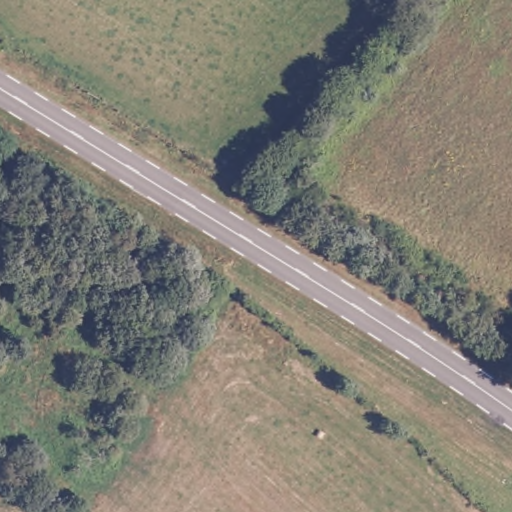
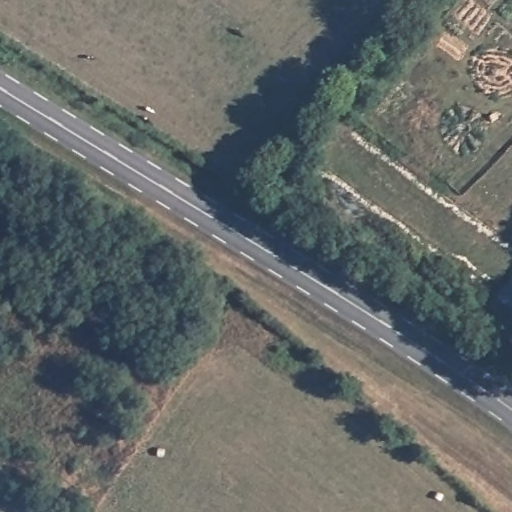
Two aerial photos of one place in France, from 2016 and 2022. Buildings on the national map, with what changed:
[]

